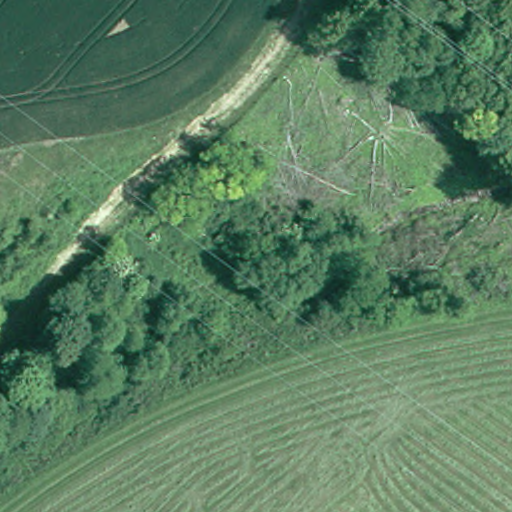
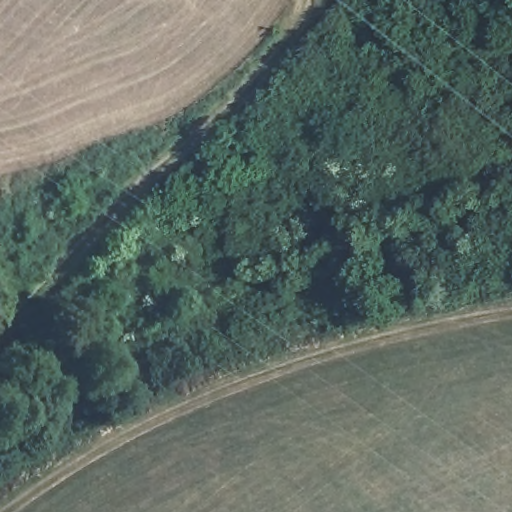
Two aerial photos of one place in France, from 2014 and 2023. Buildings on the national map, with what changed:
[]

